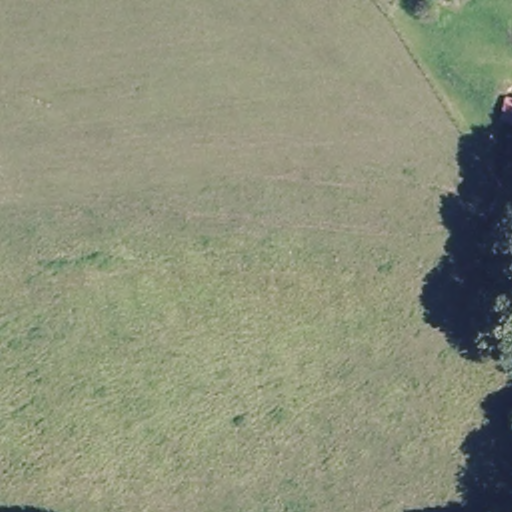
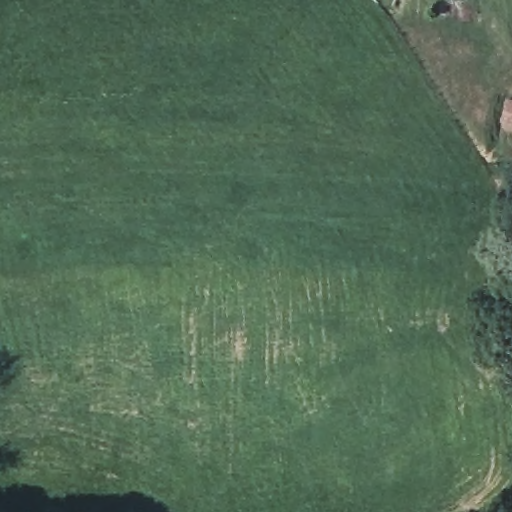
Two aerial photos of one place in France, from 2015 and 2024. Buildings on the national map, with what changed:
unchanged [(497,121),(503,100),(512,102),(512,125),(497,121)]

